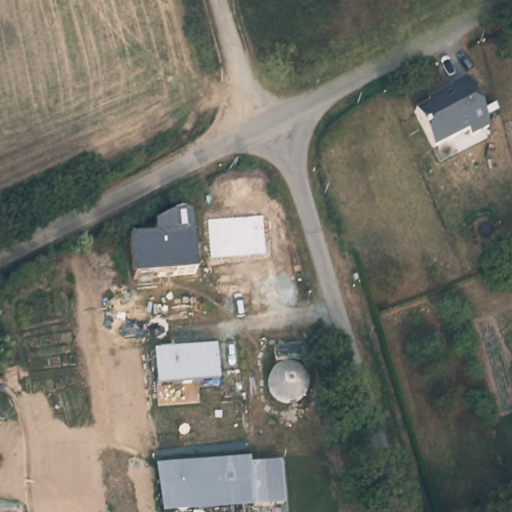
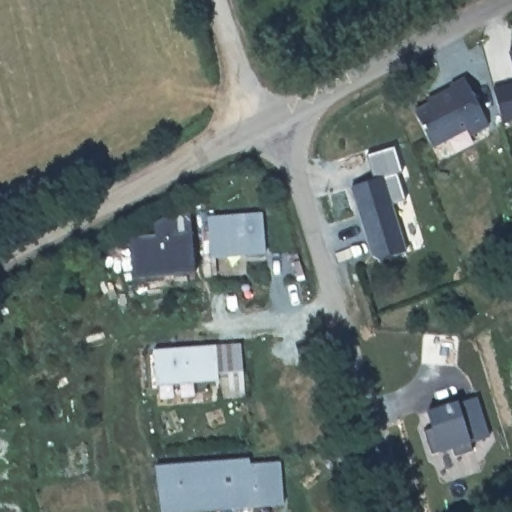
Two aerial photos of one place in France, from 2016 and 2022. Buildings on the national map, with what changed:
new [(512,52),(512,63),(509,52),(512,52)]
unchanged [(441,95),(439,91),(455,85),(454,82),(468,76),(486,117),(488,126),(471,134),(468,128),(432,144),(416,106),(441,95)]
new [(512,82),(512,120),(503,123),(493,87),(512,82)]
new [(341,116),(357,120),(356,124),(370,128),(365,150),(349,146),(343,167),(328,164),(341,116)]
new [(374,180),(366,155),(394,146),(402,172),(397,174),(405,200),(392,204),(406,251),(372,261),(351,187),(374,180)]
unchanged [(155,235),(154,224),(179,210),(190,215),(192,272),(132,278),(130,238),(155,235)]
unchanged [(207,218),(261,213),(265,255),(211,258),(207,218)]
new [(243,343),(246,398),(220,399),(217,382),(215,345),(243,343)]
unchanged [(152,351),(215,345),(217,382),(154,386),(152,351)]
new [(431,426),(426,412),(459,401),(459,403),(477,397),(489,437),(471,443),(472,450),(455,456),(453,450),(440,454),(439,451),(432,454),(425,430),(431,426)]
unchanged [(252,506),(180,512),(160,512),(155,467),(250,460),(252,506)]
unchanged [(250,463),(281,461),(282,505),(252,506),(250,463)]

